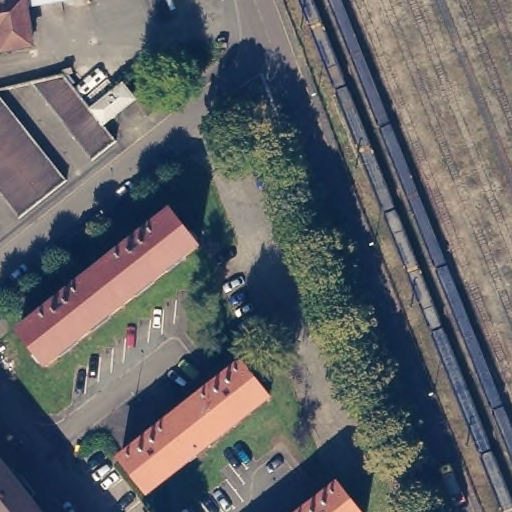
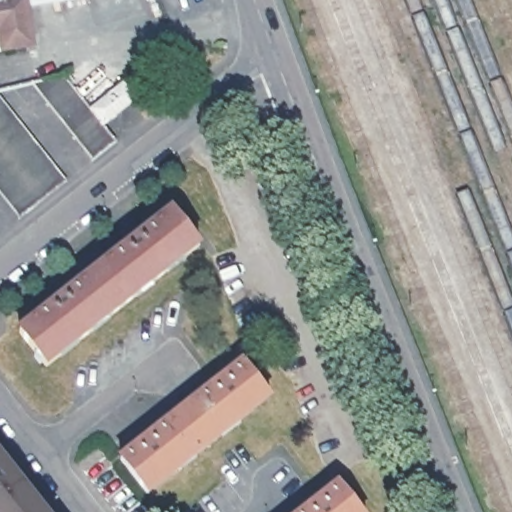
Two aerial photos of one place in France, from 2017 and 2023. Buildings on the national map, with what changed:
unchanged [(26,5),(28,7),(26,7),(32,46),(0,50),(0,0),(26,0),(26,5)]
unchanged [(28,7),(26,5),(26,0),(70,0),(28,7)]
unchanged [(32,78),(64,70),(92,106),(104,119),(116,137),(93,155),(32,78)]
unchanged [(104,119),(93,105),(123,81),(134,95),(104,119)]
unchanged [(66,182),(20,218),(0,192),(0,95),(66,182)]
unchanged [(20,333),(173,212),(199,246),(47,367),(20,333)]
unchanged [(270,393),(148,489),(121,455),(243,359),(270,393)]
unchanged [(41,512),(0,512),(0,460),(41,512)]
unchanged [(365,512),(299,512),(340,480),(365,512)]

